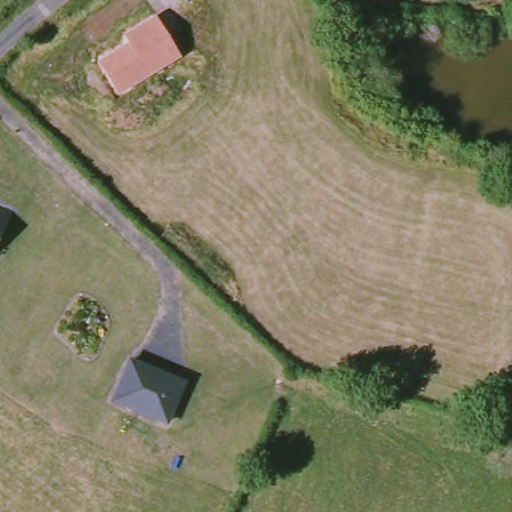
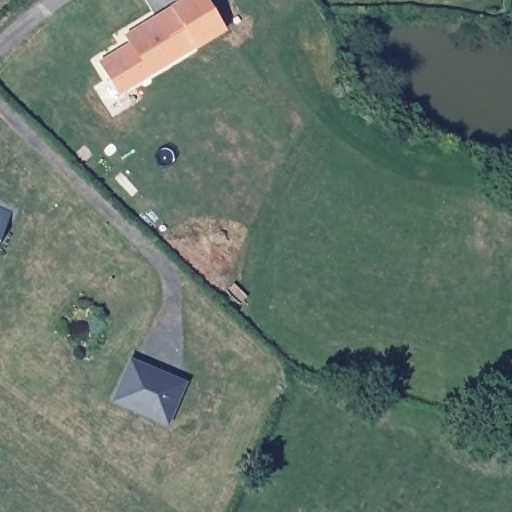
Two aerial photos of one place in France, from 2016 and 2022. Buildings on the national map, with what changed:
new [(180,57),(153,16),(181,0),(207,0),(225,29),(180,57)]
unchanged [(180,57),(119,95),(98,62),(127,42),(125,37),(153,16),(180,57)]
unchanged [(12,217),(0,242),(0,211),(12,217)]
unchanged [(114,401),(132,358),(188,382),(170,426),(114,401)]

